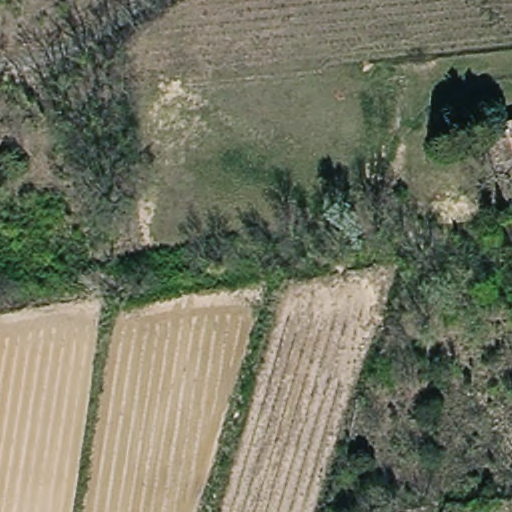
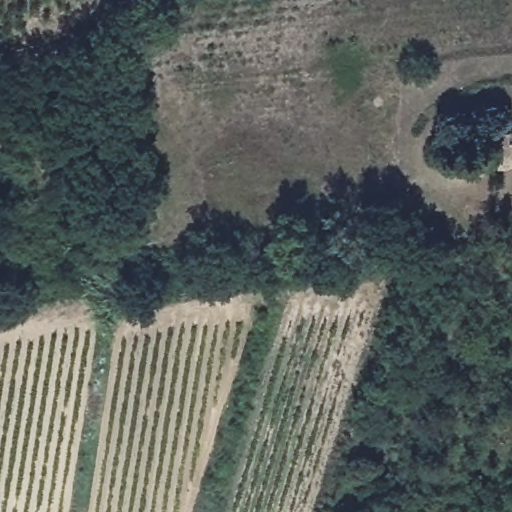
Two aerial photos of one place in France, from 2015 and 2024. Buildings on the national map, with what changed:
unchanged [(512,165),(505,165),(502,127),(512,126),(512,165)]

